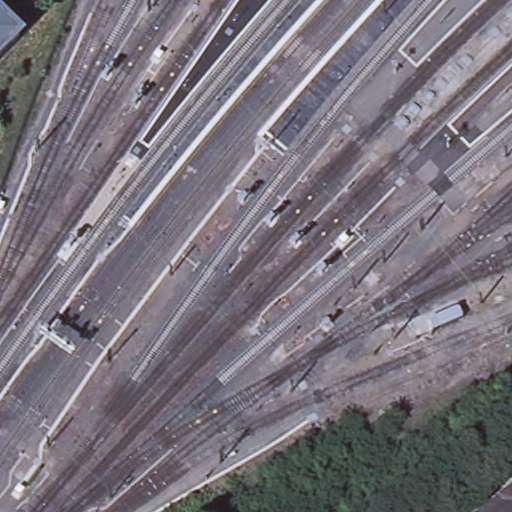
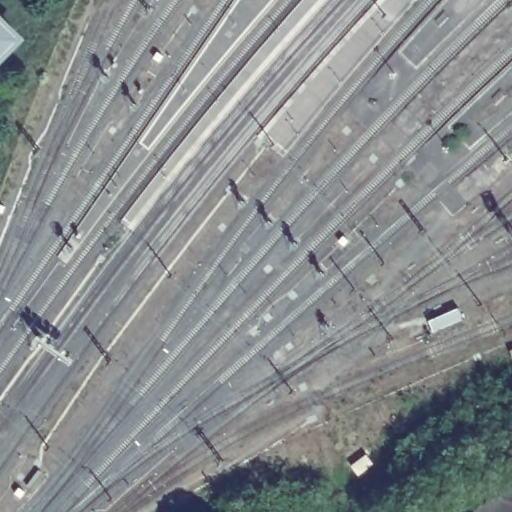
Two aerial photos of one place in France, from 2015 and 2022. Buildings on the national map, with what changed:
unchanged [(0,67),(0,16),(25,41),(0,67)]
unchanged [(512,490),(512,512),(480,512),(512,490)]

